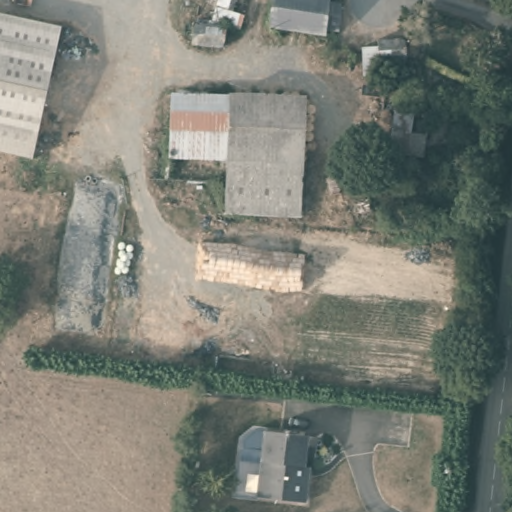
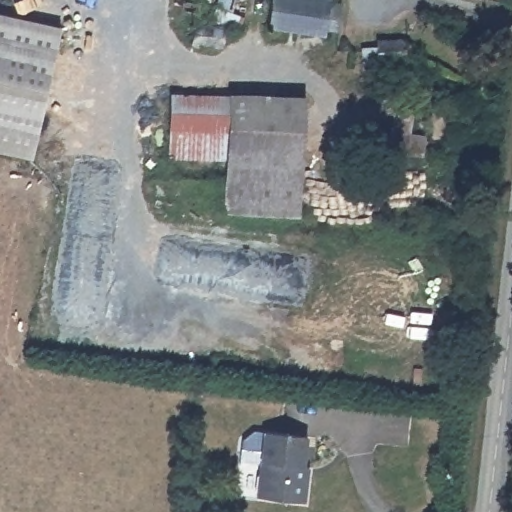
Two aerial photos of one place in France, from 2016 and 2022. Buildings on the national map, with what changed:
unchanged [(212,0),(232,0),(230,7),(212,3),(212,0)]
unchanged [(342,5),(337,32),(327,30),(325,37),(271,28),(276,0),(331,0),(331,3),(342,5)]
unchanged [(34,161),(0,153),(0,15),(62,29),(34,161)]
unchanged [(189,41),(187,40),(191,19),(206,22),(220,25),(216,45),(189,41)]
unchanged [(411,40),(417,40),(421,41),(423,43),(425,46),(425,49),(422,52),(420,54),(412,54),(412,58),(386,56),(386,70),(368,69),(370,41),(377,41),(377,35),(411,36),(411,40)]
unchanged [(181,86),(311,91),(310,136),(310,181),(229,178),(177,175),(180,116),(181,86)]
unchanged [(310,181),(308,213),(227,210),(229,178),(310,181)]
unchanged [(309,470),(306,495),(257,489),(265,424),(308,430),(302,469),(309,470)]

